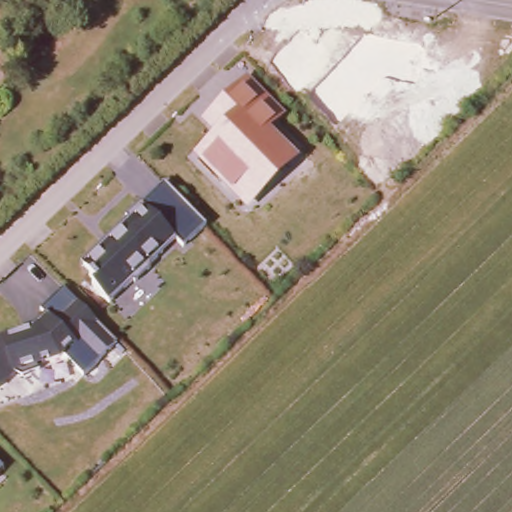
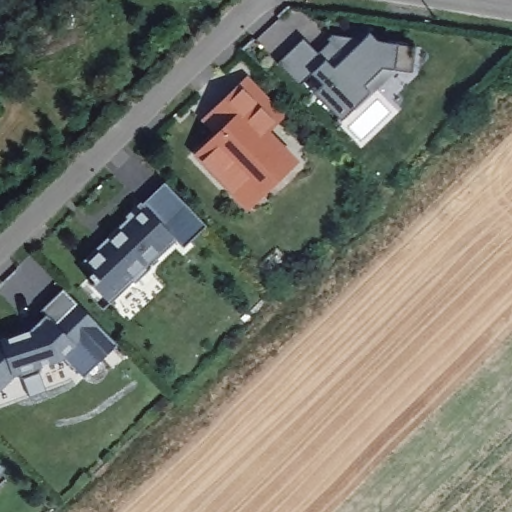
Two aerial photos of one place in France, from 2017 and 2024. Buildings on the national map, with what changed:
new [(307,39),(329,61),(341,50),(332,40),(337,36),(368,40),(375,34),(382,42),(420,48),(416,75),(397,72),(345,122),(318,95),(327,86),(315,75),(304,86),(282,64),(307,39)]
unchanged [(217,134),(200,120),(247,76),(285,116),(276,122),(269,131),(299,164),(249,211),(194,154),(217,134)]
unchanged [(82,262),(128,220),(127,216),(164,183),(204,226),(182,247),(175,239),(110,301),(82,262)]
unchanged [(42,311),(62,291),(79,307),(114,346),(82,376),(65,357),(60,362),(21,377),(12,376),(0,389),(0,338),(49,318),(42,311)]
unchanged [(0,474),(0,468),(3,472),(0,474)]

